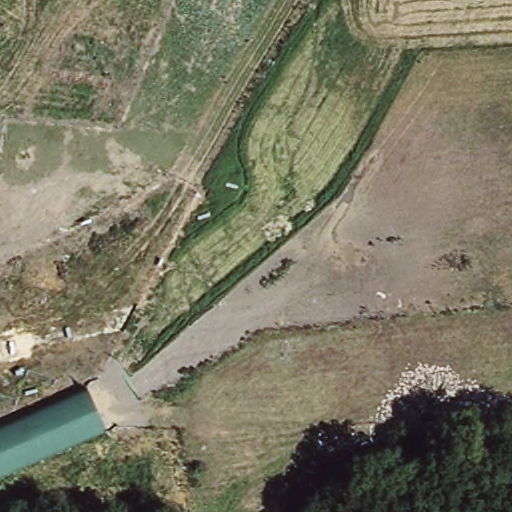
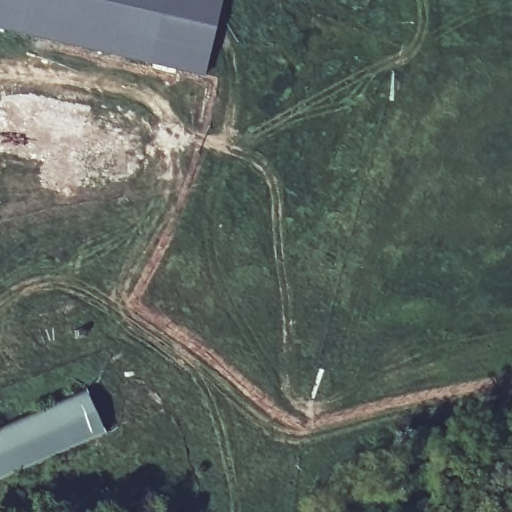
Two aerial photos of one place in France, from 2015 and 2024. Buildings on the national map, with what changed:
new [(201,75),(0,28),(0,0),(219,0),(201,75)]
unchanged [(107,432),(0,479),(0,425),(87,388),(107,432)]

